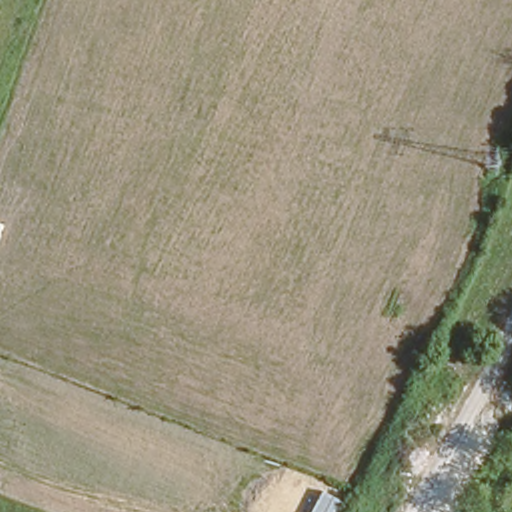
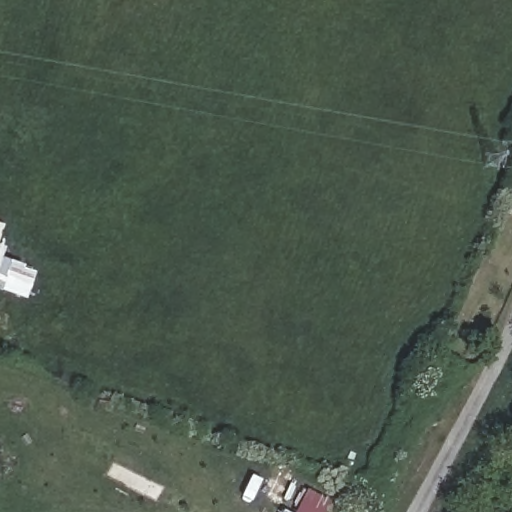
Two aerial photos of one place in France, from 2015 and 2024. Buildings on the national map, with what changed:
new [(4,226),(0,236),(0,225),(4,226)]
new [(5,249),(1,259),(36,271),(26,299),(0,290),(0,247),(5,249)]

